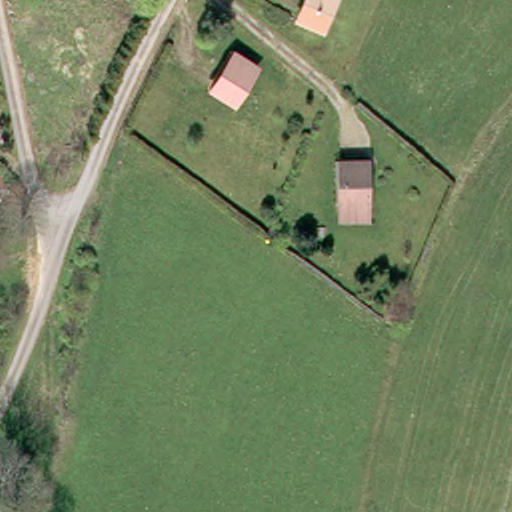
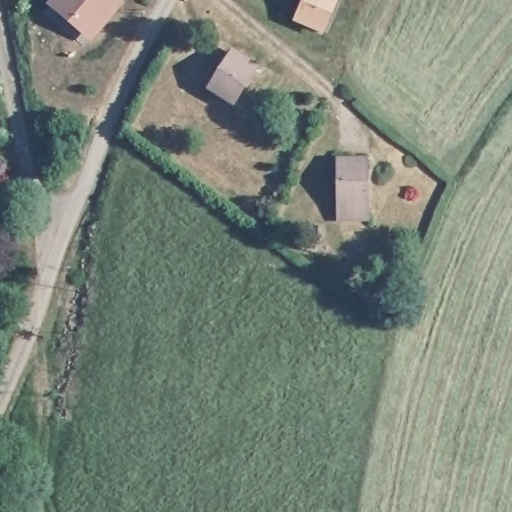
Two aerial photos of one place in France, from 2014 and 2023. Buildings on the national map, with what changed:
new [(90,41),(46,4),(49,0),(122,0),(124,2),(90,41)]
unchanged [(287,17),(295,0),(334,0),(321,32),(287,17)]
unchanged [(258,64),(228,107),(198,87),(229,45),(258,64)]
unchanged [(366,152),(369,219),(329,220),(331,155),(366,152)]

